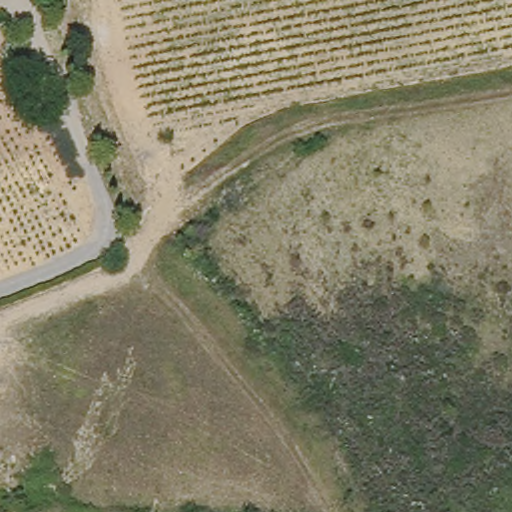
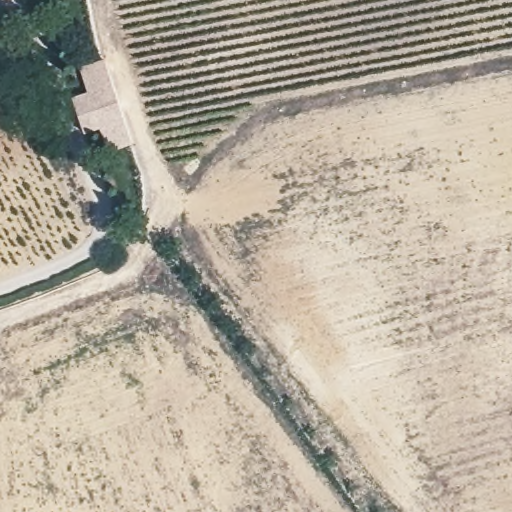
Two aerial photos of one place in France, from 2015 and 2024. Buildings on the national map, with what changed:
new [(132,145),(107,152),(100,131),(85,136),(72,93),(90,87),(83,67),(106,60),(132,145)]

